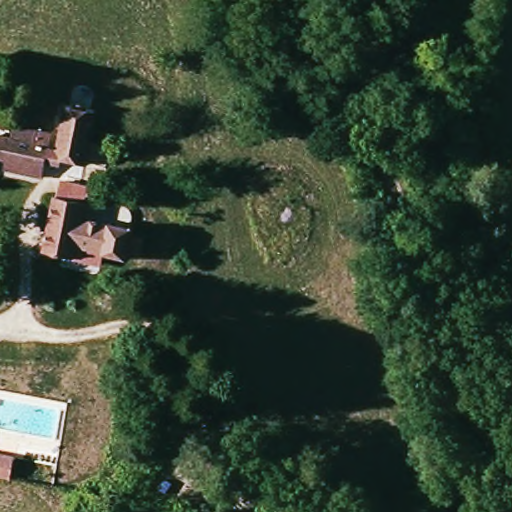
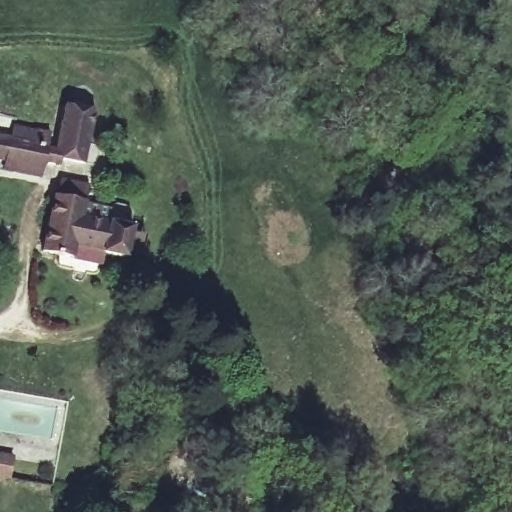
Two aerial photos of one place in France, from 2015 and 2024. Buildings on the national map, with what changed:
unchanged [(26,138),(29,125),(69,131),(65,155),(43,151),(40,165),(0,157),(0,133),(26,138)]
unchanged [(87,189),(72,258),(45,252),(60,182),(87,189)]
unchanged [(108,221),(133,226),(126,259),(102,252),(100,264),(72,258),(81,218),(108,221)]
unchanged [(14,456),(10,478),(0,476),(0,453),(14,456)]

